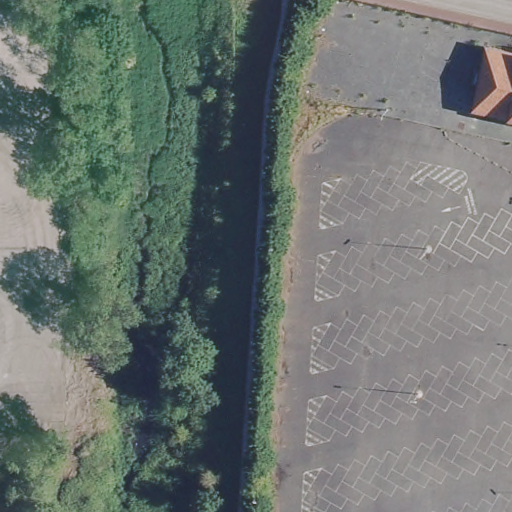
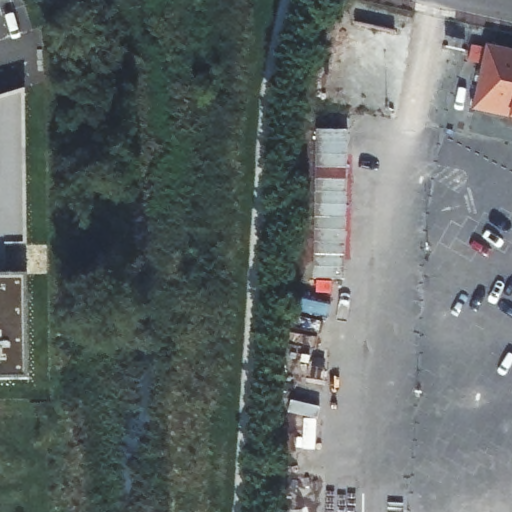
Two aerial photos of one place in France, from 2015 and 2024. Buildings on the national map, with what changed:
unchanged [(512,49),(512,114),(472,105),(487,44),(512,49)]
new [(0,377),(0,98),(24,91),(25,244),(3,245),(3,276),(28,276),(28,377),(0,377)]

